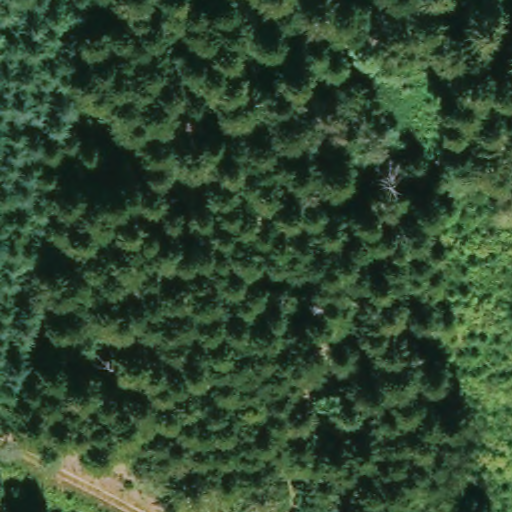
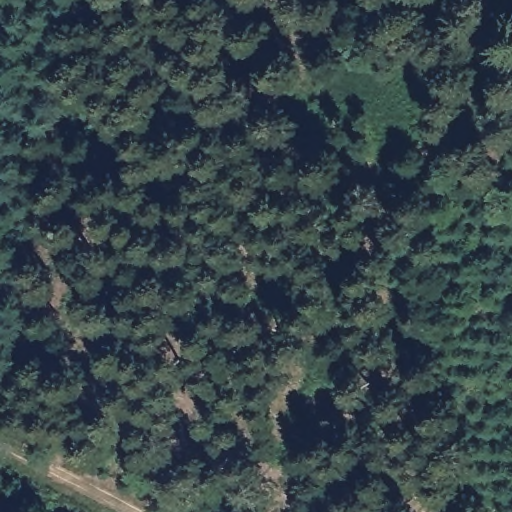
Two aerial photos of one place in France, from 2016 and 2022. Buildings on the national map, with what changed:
[]

